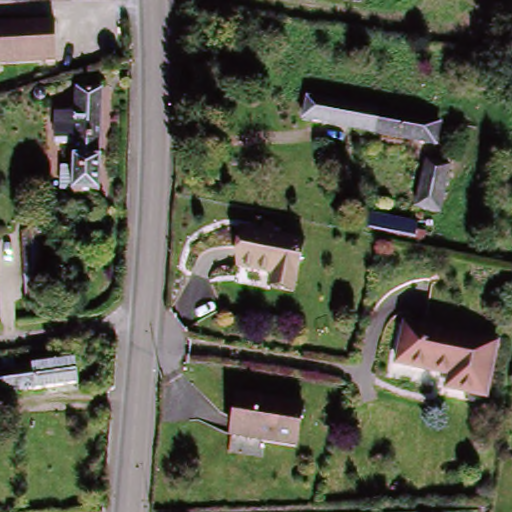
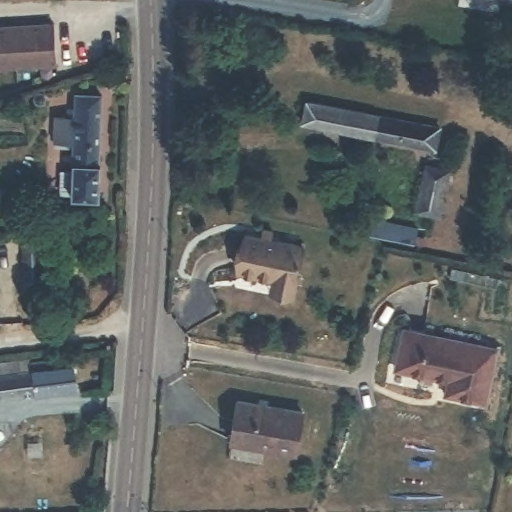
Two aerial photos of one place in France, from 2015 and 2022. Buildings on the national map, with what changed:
unchanged [(15,29),(57,27),(59,67),(17,69),(15,29)]
unchanged [(17,69),(0,70),(0,30),(15,29),(17,69)]
unchanged [(77,120),(78,90),(104,91),(101,197),(75,196),(75,195),(64,195),(65,174),(85,174),(85,144),(62,144),(63,120),(77,120)]
unchanged [(427,149),(349,133),(319,128),(304,125),(308,103),(366,114),(439,127),(435,150),(427,149)]
unchanged [(450,173),(442,220),(417,216),(425,169),(450,173)]
unchanged [(389,250),(380,249),(357,244),(362,222),(422,236),(418,256),(389,250)]
unchanged [(35,299),(34,273),(32,230),(47,230),(48,273),(46,273),(47,299),(35,299)]
unchanged [(265,293),(267,284),(269,276),(237,266),(246,236),(267,242),(270,232),(285,237),(282,247),(300,252),(290,291),(287,300),(265,293)]
unchanged [(457,379),(397,369),(404,335),(494,351),(485,403),(455,398),(457,379)]
unchanged [(80,390),(0,400),(0,369),(18,367),(19,377),(38,375),(37,367),(57,365),(57,373),(77,371),(80,390)]
unchanged [(292,451),(230,441),(235,403),(300,411),(292,451)]

